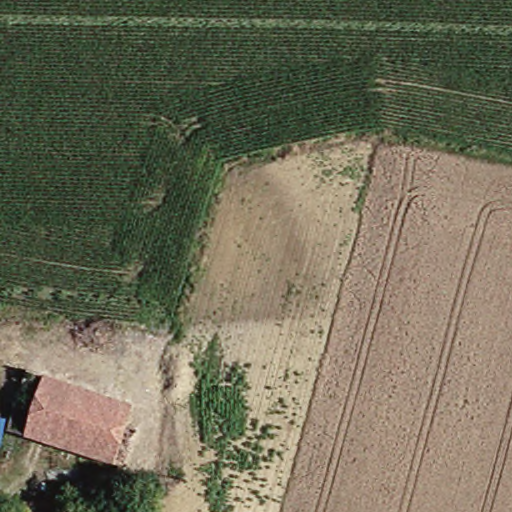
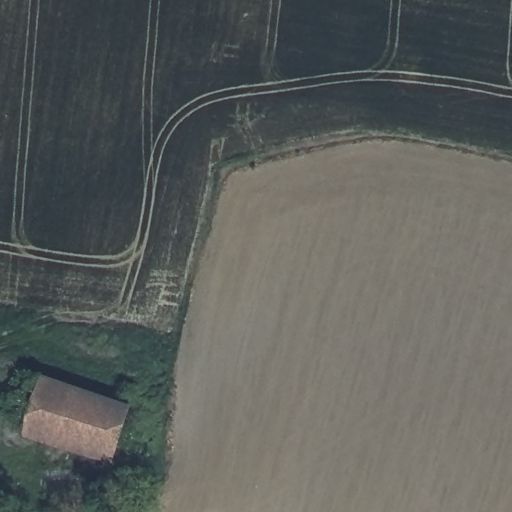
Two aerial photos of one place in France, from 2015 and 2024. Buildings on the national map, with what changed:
unchanged [(90,385),(137,400),(131,422),(120,457),(17,427),(34,369),(90,385)]

